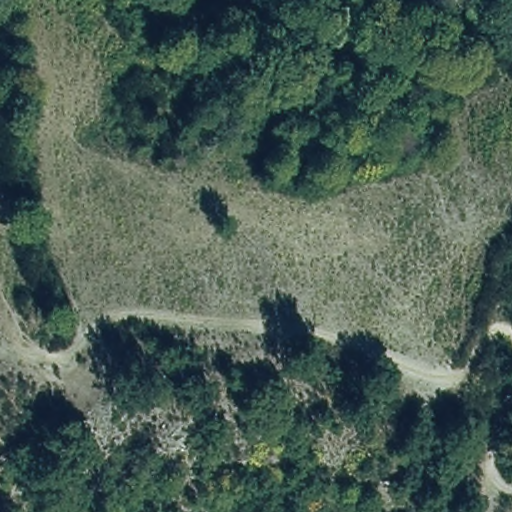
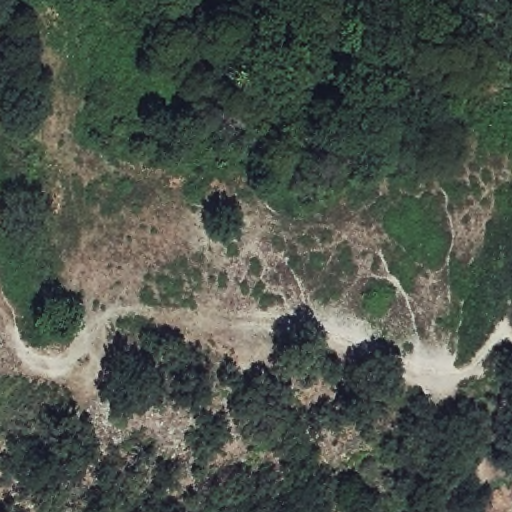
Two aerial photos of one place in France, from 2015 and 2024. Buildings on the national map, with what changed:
[]

